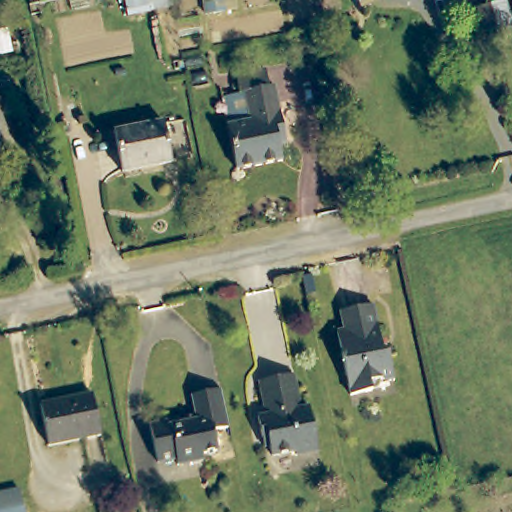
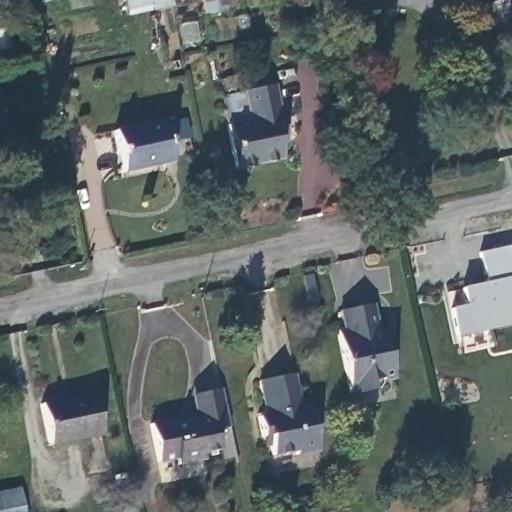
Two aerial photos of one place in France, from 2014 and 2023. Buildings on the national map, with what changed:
unchanged [(171,10),(127,18),(123,0),(170,0),(171,10)]
unchanged [(466,9),(482,5),(501,0),(505,0),(510,24),(488,30),(473,34),(466,9)]
unchanged [(272,129),(277,156),(233,165),(222,119),(244,114),(239,85),(270,78),(280,127),(272,129)]
unchanged [(118,172),(110,130),(158,121),(167,162),(118,172)]
new [(457,340),(450,309),(464,305),(461,287),(486,280),(479,252),(511,245),(512,250),(512,326),(457,340)]
unchanged [(387,351),(391,377),(370,381),(372,391),(350,395),(338,327),(346,329),(342,308),(371,303),(378,344),(387,351)]
unchanged [(256,379),(290,372),(298,407),(309,404),(319,451),(297,456),(296,447),(269,453),(264,434),(258,436),(253,416),(264,414),(256,379)]
unchanged [(211,431),(216,450),(200,453),(202,460),(173,467),(171,459),(153,463),(144,427),(163,423),(164,428),(194,421),(188,396),(203,393),(218,390),(226,428),(211,431)]
unchanged [(97,436),(47,446),(39,406),(88,396),(97,436)]
unchanged [(0,512),(0,492),(18,488),(23,512),(0,512)]

